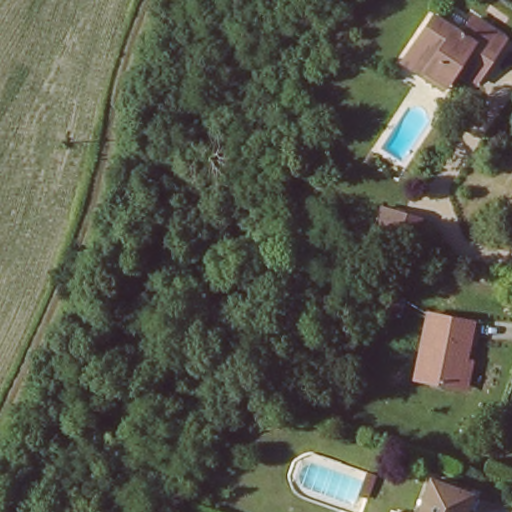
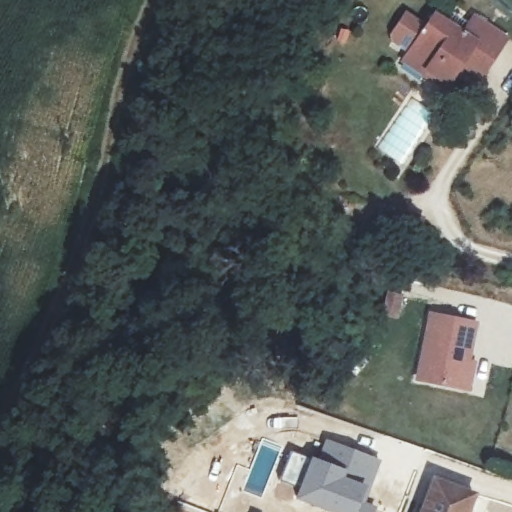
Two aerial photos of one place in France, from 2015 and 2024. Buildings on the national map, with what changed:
unchanged [(448,76),(443,85),(401,55),(410,45),(436,11),(447,19),(454,8),(472,20),(475,15),(506,36),(485,67),(476,79),(456,65),(448,76)]
unchanged [(467,390),(460,389),(415,382),(424,316),(469,323),(463,363),(471,363),(467,390)]
new [(290,450),(316,458),(324,437),(380,459),(365,501),(378,506),(375,512),(329,512),(293,498),(298,485),(279,478),(290,450)]
unchanged [(424,474),(475,493),(467,512),(408,512),(424,474)]

